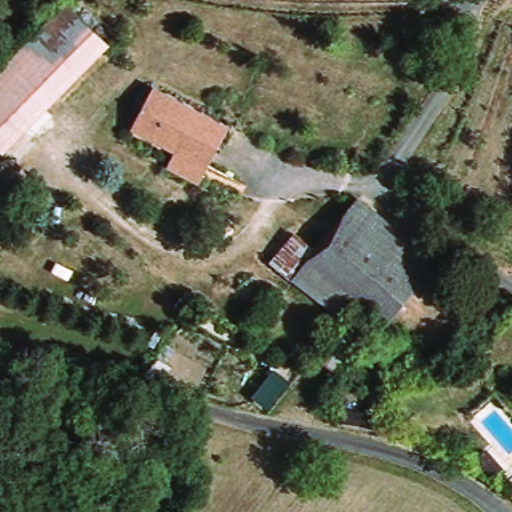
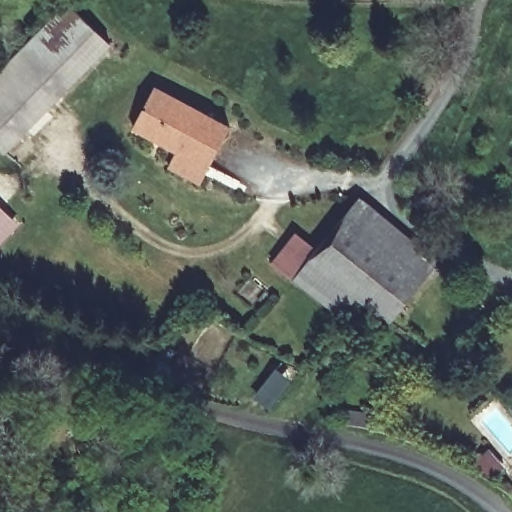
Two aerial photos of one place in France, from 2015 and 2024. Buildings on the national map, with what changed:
unchanged [(0,153),(0,72),(67,5),(68,5),(110,46),(0,153)]
unchanged [(170,171),(176,155),(132,133),(152,91),(228,131),(208,172),(202,188),(170,171)]
unchanged [(320,304),(312,296),(310,295),(282,275),(305,244),(320,254),(362,202),(440,265),(392,324),(380,313),(364,300),(353,291),(333,315),(320,304)]
new [(19,224),(0,242),(0,206),(19,224)]

